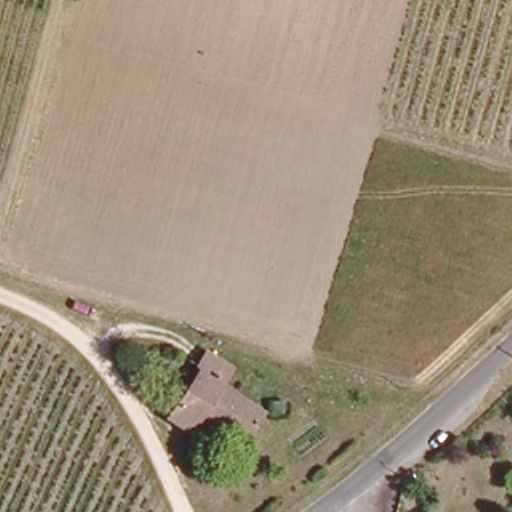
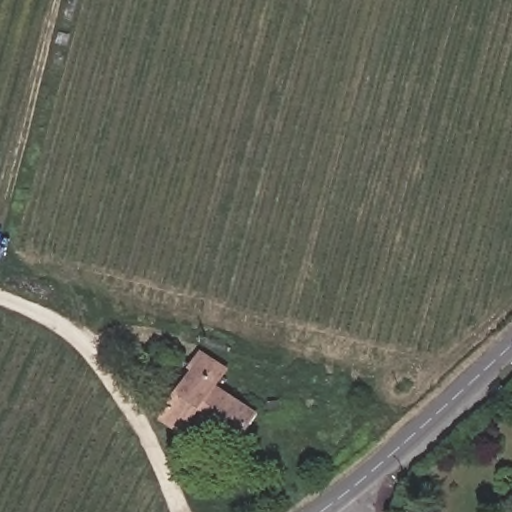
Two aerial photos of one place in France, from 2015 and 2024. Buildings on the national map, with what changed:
unchanged [(160,414),(165,407),(202,352),(228,369),(217,385),(258,412),(238,442),(197,414),(185,431),(167,419),(160,414)]

